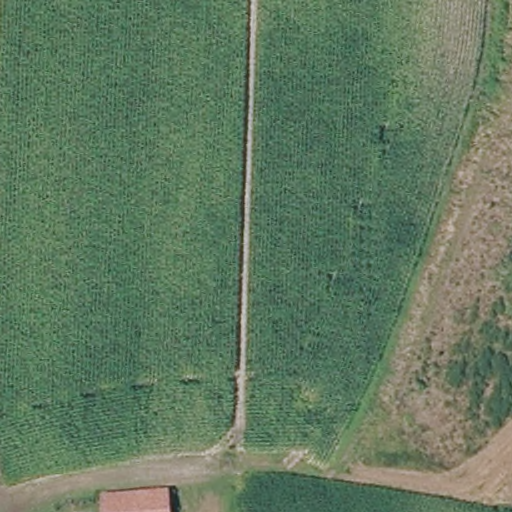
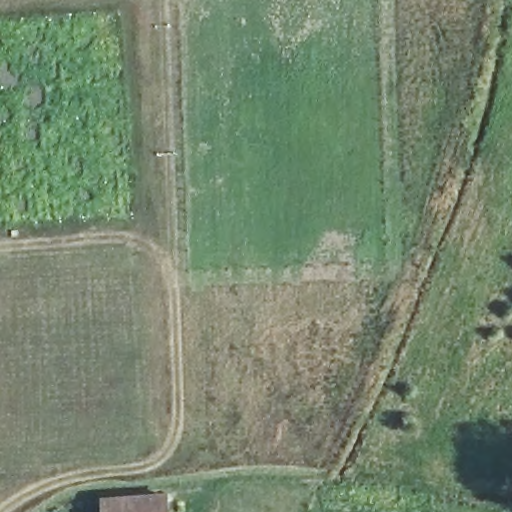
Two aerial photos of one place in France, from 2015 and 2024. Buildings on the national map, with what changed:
unchanged [(166,512),(107,512),(106,509),(164,499),(166,512)]

